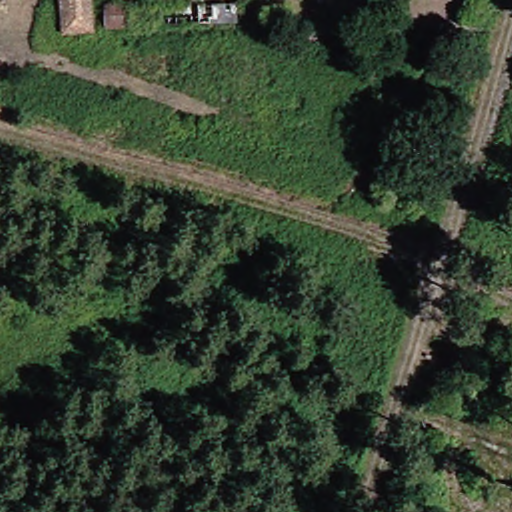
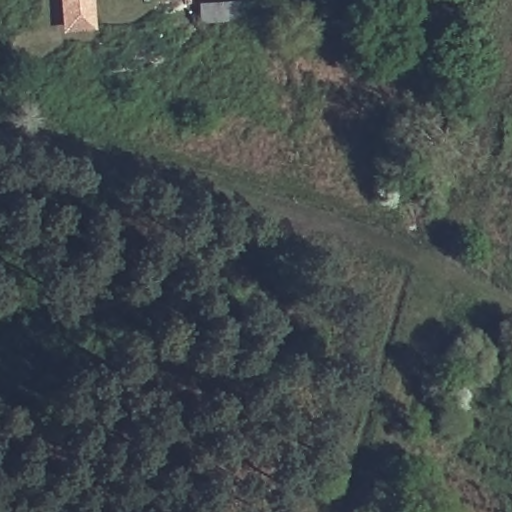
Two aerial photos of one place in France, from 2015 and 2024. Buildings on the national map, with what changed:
unchanged [(54,0),(92,0),(92,29),(55,30),(54,0)]
unchanged [(99,16),(99,0),(121,0),(123,16),(99,16)]
unchanged [(229,33),(204,30),(208,0),(231,0),(229,33)]

